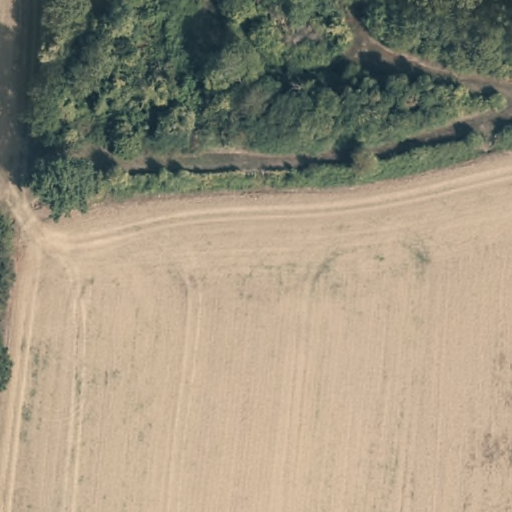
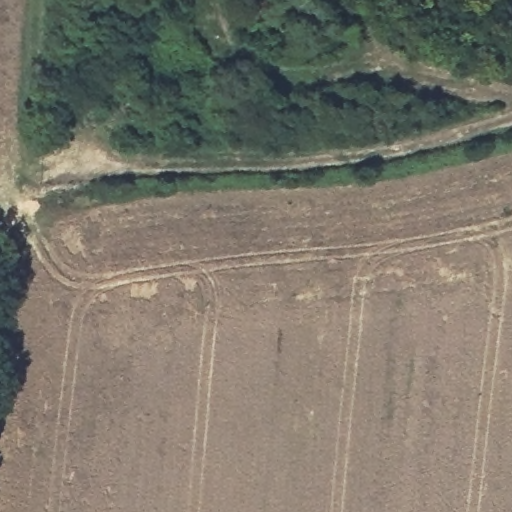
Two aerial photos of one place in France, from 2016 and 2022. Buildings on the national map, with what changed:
unchanged [(269,51),(259,51),(259,40),(270,39),(271,18),(286,18),(286,0),(312,0),(311,18),(310,48),(269,49),(269,51)]

